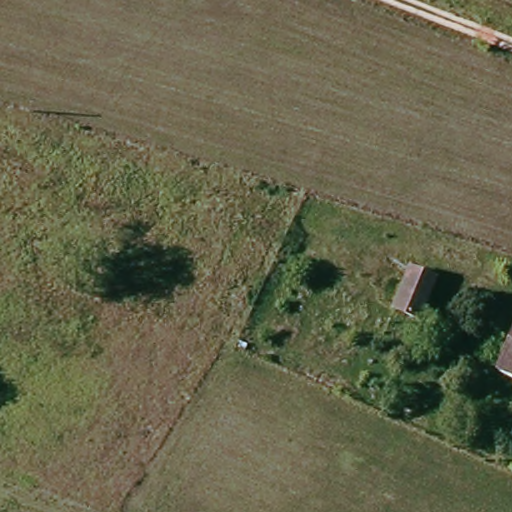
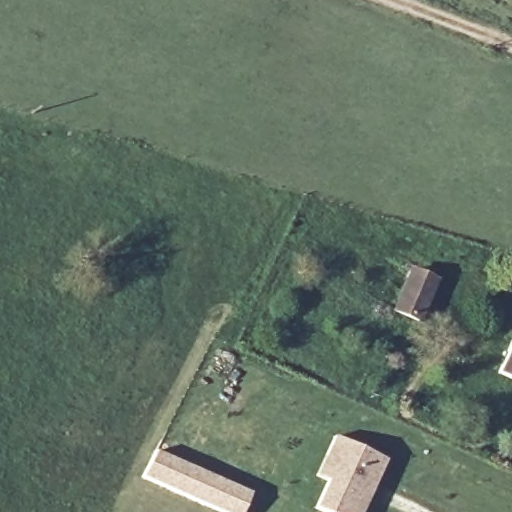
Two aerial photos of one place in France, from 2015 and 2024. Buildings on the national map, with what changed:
unchanged [(421,319),(395,308),(412,268),(438,279),(421,319)]
unchanged [(512,353),(512,378),(503,374),(512,353)]
new [(325,512),(317,509),(329,482),(317,477),(327,455),(335,437),(386,460),(371,494),(368,501),(363,512),(325,512)]
new [(224,512),(170,489),(145,479),(156,452),(181,463),(252,493),(245,512),(224,512)]

